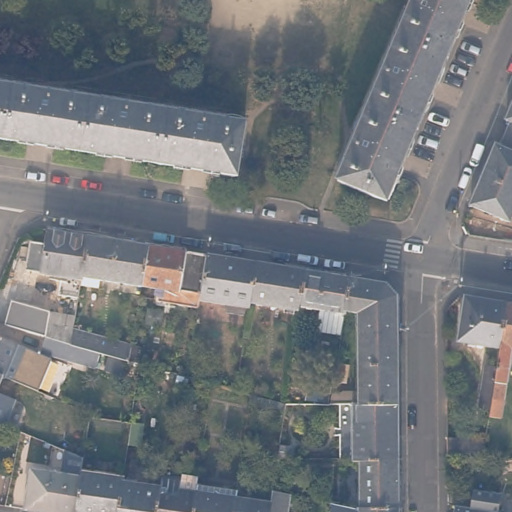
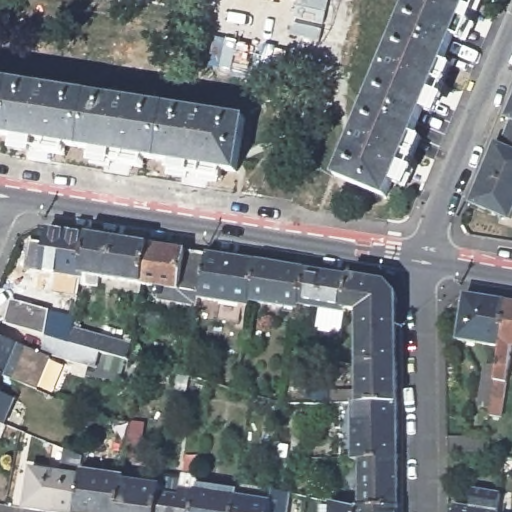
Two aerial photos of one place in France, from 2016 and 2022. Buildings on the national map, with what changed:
unchanged [(387,198),(338,178),(413,0),(469,0),(387,198)]
unchanged [(239,173),(0,135),(0,82),(246,120),(239,173)]
unchanged [(510,120),(505,118),(512,101),(512,136),(505,133),(510,120)]
unchanged [(512,185),(482,173),(494,143),(500,145),(505,133),(512,136),(512,185)]
unchanged [(512,185),(512,211),(508,221),(469,204),(482,173),(512,185)]
unchanged [(81,282),(80,288),(70,287),(71,275),(42,270),(49,225),(89,231),(81,282)]
unchanged [(150,240),(144,280),(104,274),(102,284),(81,282),(89,231),(150,240)]
unchanged [(205,288),(144,280),(150,240),(210,249),(205,288)]
unchanged [(255,296),(254,302),(204,294),(205,288),(210,249),(260,257),(255,296)]
unchanged [(303,300),(303,303),(255,296),(260,257),(309,264),(303,300)]
unchanged [(353,271),(348,304),(344,328),(319,325),(322,303),(303,300),(309,264),(353,271)]
unchanged [(343,398),(332,399),(335,385),(361,384),(360,305),(348,304),(353,271),(385,276),(398,292),(400,396),(343,398)]
unchanged [(508,303),(501,347),(458,341),(465,296),(508,303)]
unchanged [(498,368),(501,347),(508,303),(512,303),(512,354),(502,419),(490,417),(491,410),(479,408),(486,366),(498,368)]
unchanged [(43,352),(46,338),(6,327),(13,304),(54,314),(51,323),(75,329),(135,345),(135,339),(142,340),(139,363),(132,361),(103,353),(100,367),(43,352)]
unchanged [(19,344),(5,377),(3,376),(0,374),(0,336),(19,344)]
unchanged [(19,344),(54,358),(40,391),(5,377),(19,344)]
unchanged [(350,359),(347,378),(336,376),(338,362),(340,357),(350,359)]
unchanged [(154,367),(155,362),(175,367),(174,372),(154,367)]
unchanged [(3,376),(0,382),(0,374),(3,376)]
unchanged [(2,437),(0,436),(0,391),(16,399),(5,425),(6,426),(2,437)]
unchanged [(400,452),(361,452),(342,453),(343,398),(400,396),(400,452)]
unchanged [(133,422),(145,424),(142,438),(136,437),(135,448),(129,448),(133,423),(133,422)]
unchanged [(448,439),(486,439),(483,457),(448,455),(448,439)]
unchanged [(31,468),(62,473),(65,450),(85,458),(82,471),(81,476),(76,512),(54,512),(25,508),(31,468)]
unchanged [(400,502),(361,498),(361,452),(400,452),(400,502)]
unchanged [(82,471),(125,477),(124,481),(119,512),(76,512),(81,476),(82,471)]
unchanged [(160,486),(160,492),(156,512),(119,512),(124,481),(160,486)]
unchanged [(200,484),(238,489),(236,497),(234,512),(195,512),(199,491),(200,484)]
unchanged [(470,505),(473,486),(500,490),(500,493),(497,512),(454,512),(456,502),(470,505)]
unchanged [(179,495),(180,489),(199,491),(195,512),(156,512),(160,492),(179,495)]
unchanged [(272,502),(273,494),(291,496),(289,512),(234,512),(236,497),(272,502)]
unchanged [(334,512),(334,495),(361,498),(400,502),(400,512),(334,512)]

